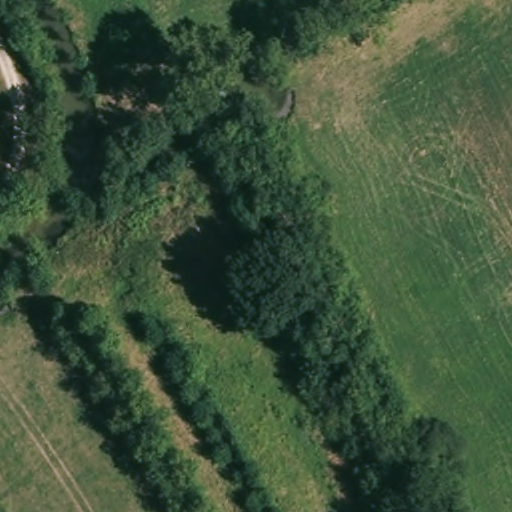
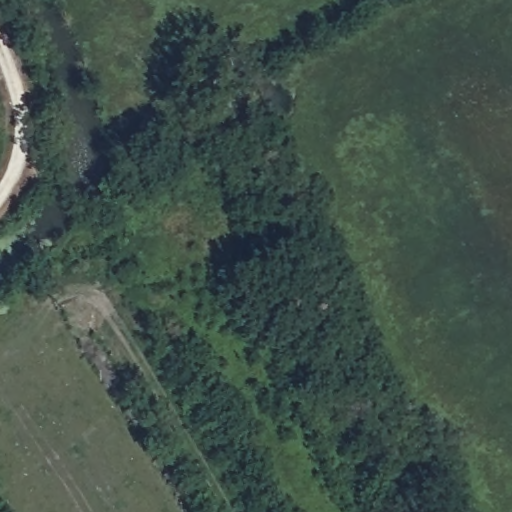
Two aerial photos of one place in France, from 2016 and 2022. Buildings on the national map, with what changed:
unchanged [(35,65),(38,70),(42,116),(28,116),(18,71),(0,33),(0,24),(11,18),(35,65)]

